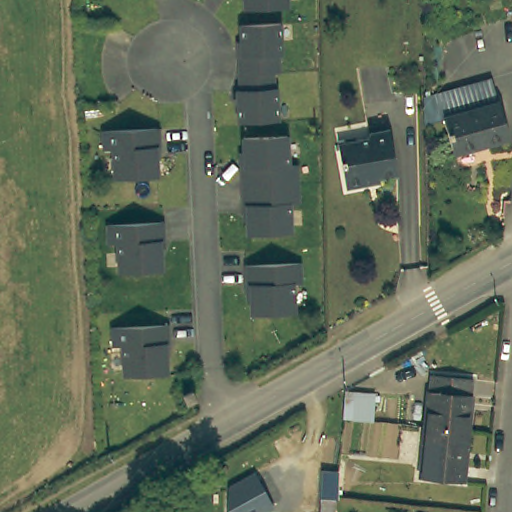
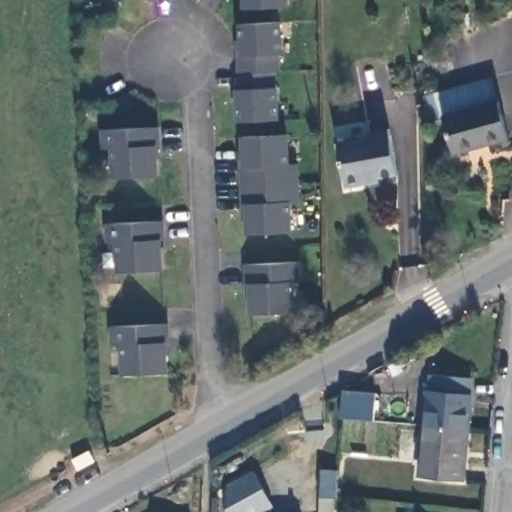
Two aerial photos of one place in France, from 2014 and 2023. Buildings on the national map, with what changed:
unchanged [(243,0),(285,0),(286,7),(244,8),(243,0)]
unchanged [(240,124),(239,94),(242,94),(242,77),(248,77),(247,60),(244,60),(242,29),(282,27),(284,59),(280,59),(281,76),(273,76),(274,92),(277,92),(277,123),(240,124)]
unchanged [(434,100),(487,85),(494,107),(441,121),(434,100)]
unchanged [(497,107),(506,142),(451,157),(441,121),(494,107),(497,107)]
unchanged [(113,174),(112,146),(102,146),(101,129),(157,129),(157,146),(154,146),(155,173),(113,174)]
unchanged [(363,186),(360,190),(343,194),(334,144),(360,138),(364,133),(385,129),(395,180),(363,186)]
unchanged [(249,234),(247,200),(242,200),(241,167),(245,166),(244,135),(283,135),(286,164),(295,164),(297,202),(287,203),(290,232),(249,234)]
unchanged [(122,271),(121,241),(110,241),(109,221),(165,220),(166,239),(162,239),(163,269),(122,271)]
unchanged [(255,312),(253,282),(247,282),(245,263),(301,262),(302,282),(292,282),(293,311),(255,312)]
unchanged [(125,373),(124,344),(114,344),(113,324),(170,322),(170,340),(166,340),(167,371),(125,373)]
unchanged [(427,376),(467,380),(461,430),(422,425),(427,376)]
unchanged [(372,419),(355,417),(343,416),(346,389),(375,393),(372,419)]
unchanged [(456,481),(416,477),(422,425),(461,430),(456,481)]
unchanged [(254,470),(273,507),(266,512),(226,512),(227,485),(254,470)]
unchanged [(330,512),(316,512),(317,492),(331,495),(330,512)]

